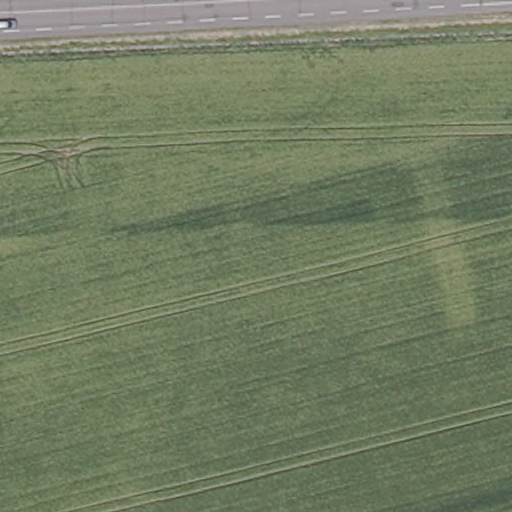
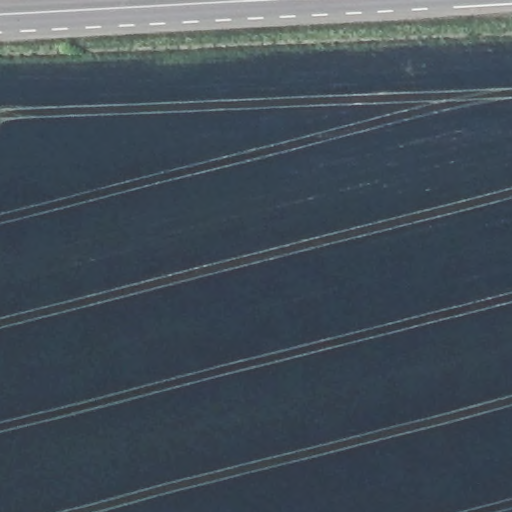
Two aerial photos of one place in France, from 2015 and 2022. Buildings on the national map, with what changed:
[]

